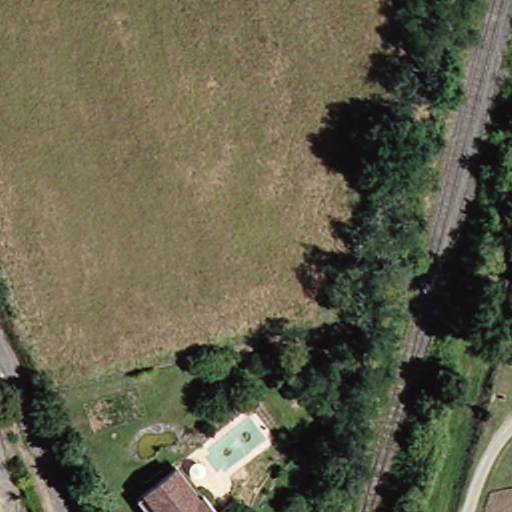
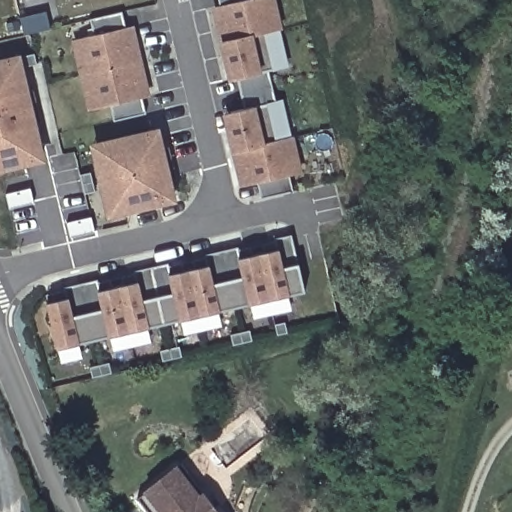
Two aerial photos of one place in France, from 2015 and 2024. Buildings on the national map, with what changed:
new [(247,184),(241,185),(237,168),(227,130),(224,113),(230,111),(243,109),(236,78),(231,79),(227,62),(226,62),(217,24),(214,7),(219,6),(217,0),(273,0),(275,10),(280,29),(276,30),(285,66),(274,69),(282,101),(268,104),(277,139),(291,135),(296,154),(300,171),(289,174),(292,190),(261,197),(251,200),(247,184)]
new [(88,92),(87,93),(79,57),(80,57),(76,40),(85,37),(95,35),(91,20),(123,12),(127,27),(133,26),(137,43),(145,79),(149,95),(144,96),(147,112),(111,120),(108,106),(92,110),(88,92)]
new [(11,57),(17,55),(42,156),(35,158),(0,166),(0,60),(11,57)]
new [(105,199),(96,162),(97,162),(93,145),(102,143),(150,131),(156,130),(172,200),(166,201),(118,212),(110,215),(106,199),(105,199)]
new [(58,348),(57,348),(46,304),(47,304),(45,295),(63,290),(62,287),(97,280),(97,282),(133,273),(132,271),(167,262),(169,265),(204,257),(203,254),(237,245),(239,249),(274,240),(273,237),(292,233),(305,290),(290,293),(292,305),(254,314),(251,303),(219,310),(222,322),(183,331),(181,320),(147,327),(150,339),(80,355),(61,360),(58,348)]
unchanged [(173,460),(196,489),(200,486),(221,512),(150,512),(134,492),(173,460)]

